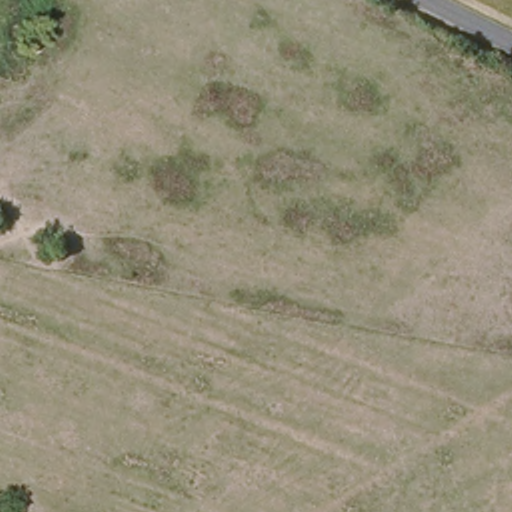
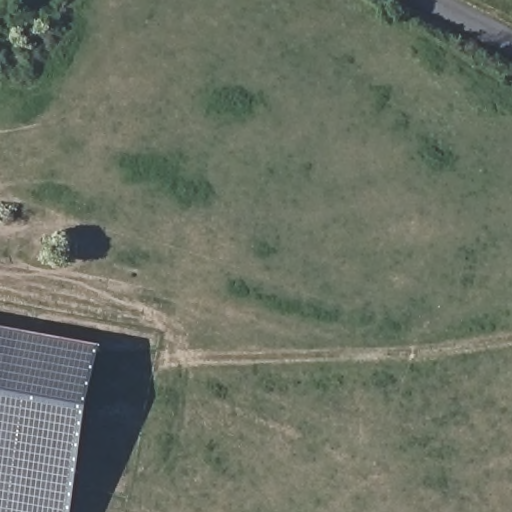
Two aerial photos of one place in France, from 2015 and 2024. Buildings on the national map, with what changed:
new [(69,512),(0,512),(0,335),(96,353),(69,512)]

